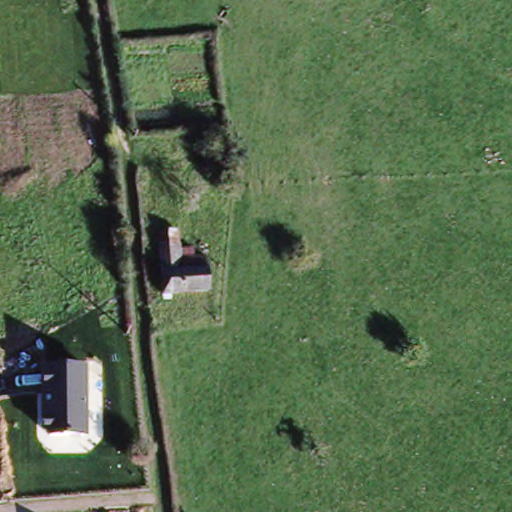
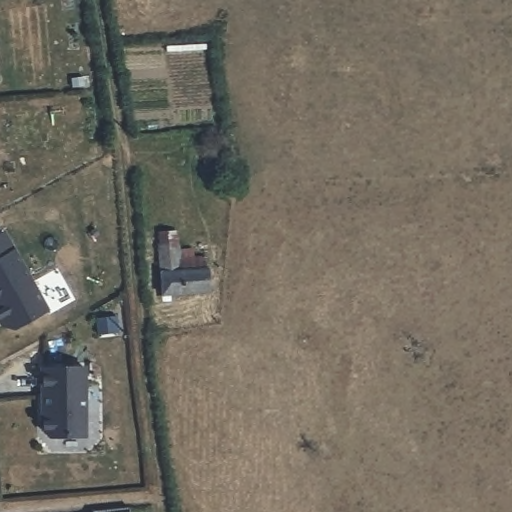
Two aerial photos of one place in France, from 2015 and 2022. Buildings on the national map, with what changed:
new [(15,328),(3,325),(0,319),(0,233),(3,231),(48,308),(15,328)]
unchanged [(211,292),(165,297),(160,250),(185,248),(188,274),(209,272),(211,292)]
unchanged [(47,367),(86,367),(87,436),(47,435),(47,367)]
new [(132,512),(99,512),(132,509),(132,512)]

